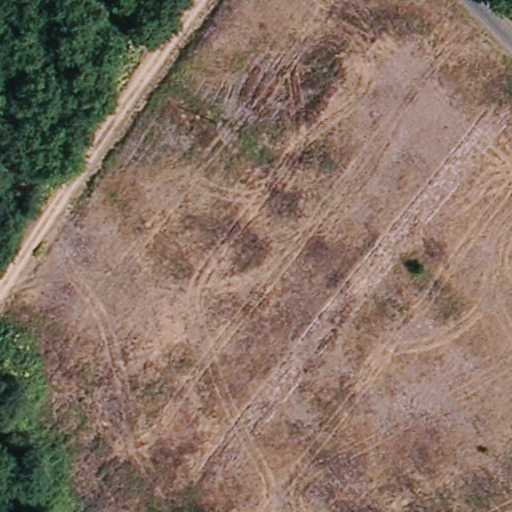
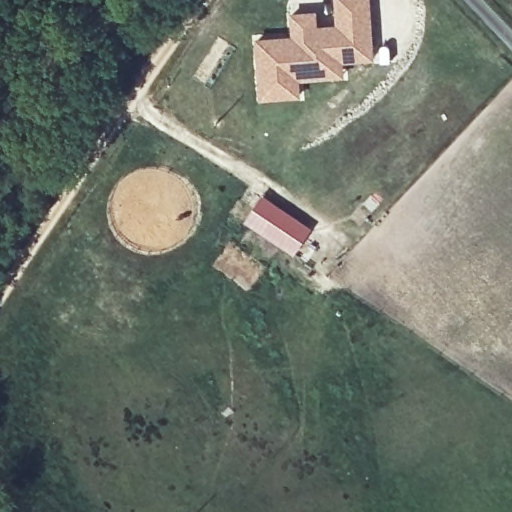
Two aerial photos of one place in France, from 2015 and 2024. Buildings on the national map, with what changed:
new [(297,80),(297,97),(260,99),(257,40),(293,38),(292,15),(315,14),(316,34),(325,34),(325,29),(338,28),(337,11),(337,0),(369,0),(370,10),(372,62),(341,63),(341,78),(297,80)]
new [(263,195),(299,221),(312,231),(295,254),(246,219),(255,207),(263,195)]

